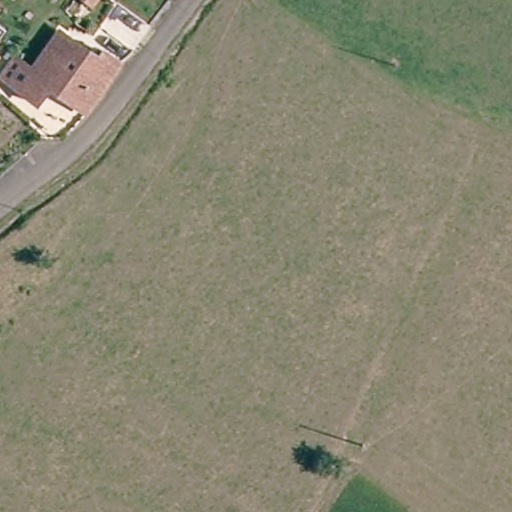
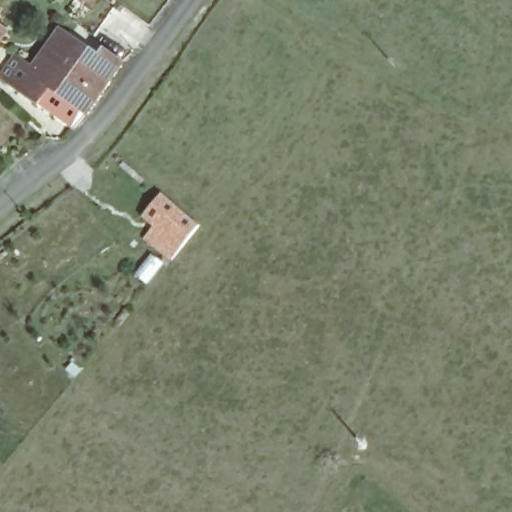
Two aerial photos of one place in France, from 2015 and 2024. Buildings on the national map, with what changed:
unchanged [(97,0),(109,0),(104,5),(97,0)]
new [(5,11),(0,19),(0,7),(5,11)]
new [(10,32),(1,46),(0,45),(0,25),(10,32)]
unchanged [(123,68),(87,116),(52,89),(40,105),(0,76),(0,68),(11,53),(34,70),(63,32),(102,61),(107,56),(123,68)]
new [(199,226),(172,263),(144,242),(154,227),(142,218),(161,193),(199,226)]

